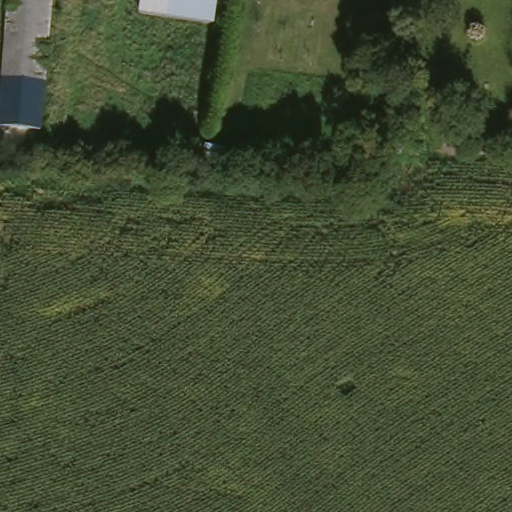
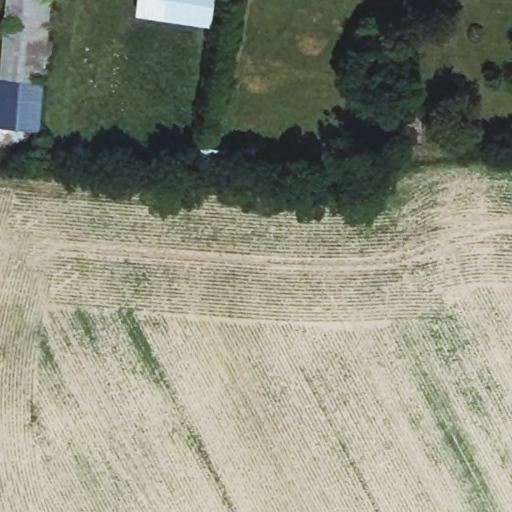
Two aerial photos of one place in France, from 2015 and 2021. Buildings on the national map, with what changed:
unchanged [(1,129),(10,0),(49,0),(38,131),(1,129)]
unchanged [(210,29),(135,16),(137,0),(215,0),(210,29)]

